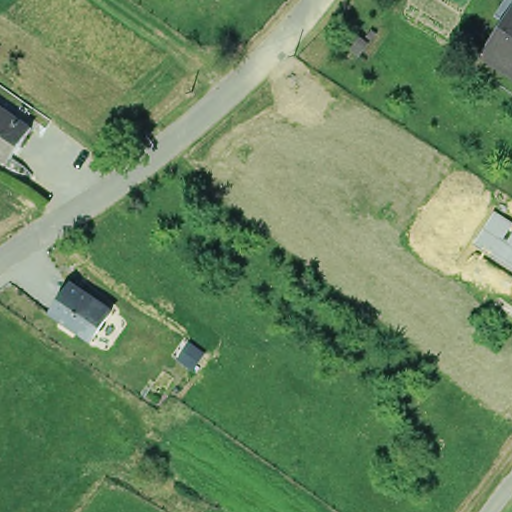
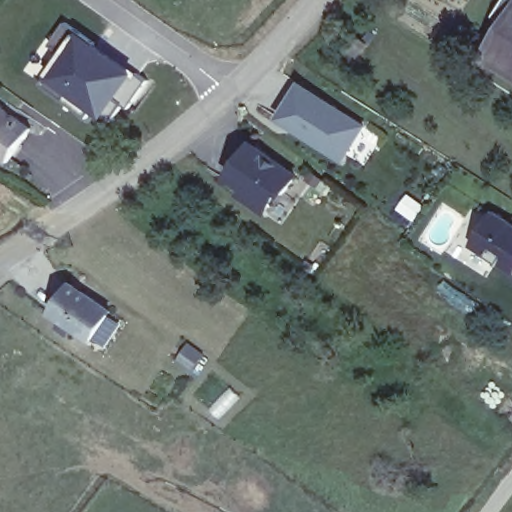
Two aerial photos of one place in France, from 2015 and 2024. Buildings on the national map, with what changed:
unchanged [(512,0),(512,19),(503,14),(512,0)]
new [(58,54),(45,44),(65,20),(79,29),(129,62),(153,81),(110,130),(105,126),(103,130),(73,110),(38,80),(58,54)]
unchanged [(500,46),(512,28),(512,64),(496,53),(500,46)]
new [(376,122),(351,163),(281,119),(306,81),(376,122)]
unchanged [(29,125),(6,158),(0,154),(0,105),(29,125)]
new [(302,173),(283,203),(278,199),(266,217),(234,195),(240,188),(225,178),(254,139),(302,173)]
unchanged [(495,210),(512,221),(512,269),(474,244),(495,210)]
unchanged [(53,310),(73,281),(113,308),(92,338),(53,310)]

